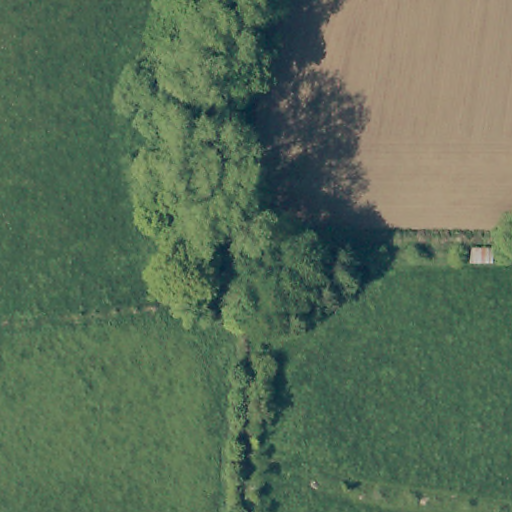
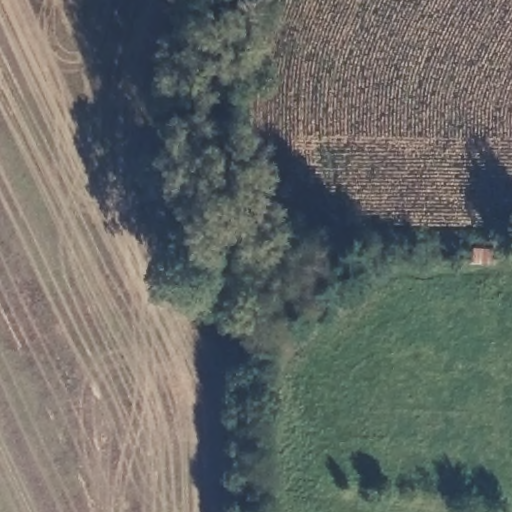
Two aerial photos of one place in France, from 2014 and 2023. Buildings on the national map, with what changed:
unchanged [(472,249),(494,250),(493,263),(472,263),(472,249)]

